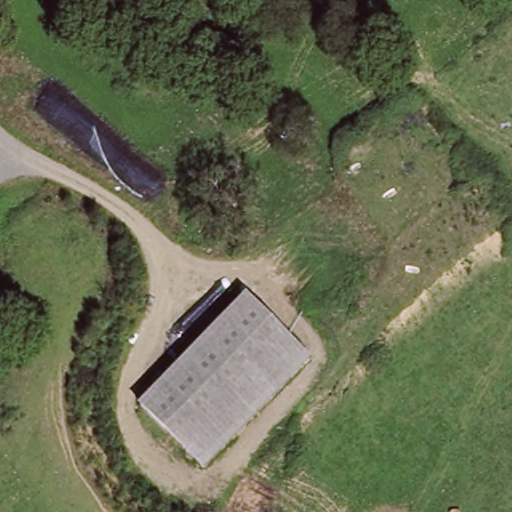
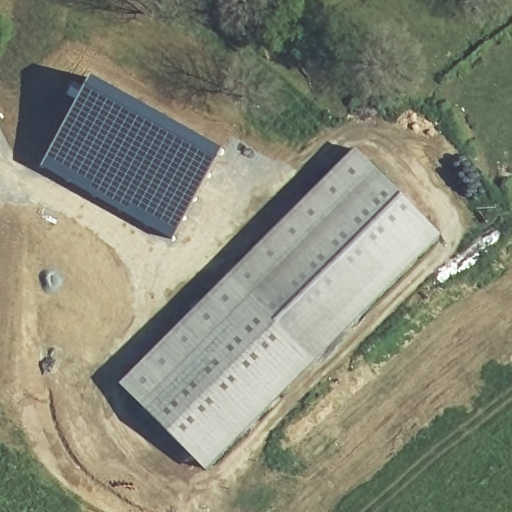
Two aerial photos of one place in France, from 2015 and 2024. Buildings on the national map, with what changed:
new [(90,77),(223,150),(172,241),(118,213),(39,167),(90,77)]
new [(118,383),(354,148),(440,236),(311,360),(297,346),(249,296),(141,402),(118,383)]
unchanged [(189,451),(141,402),(249,296),(297,346),(189,451)]
unchanged [(204,466),(189,451),(297,346),(311,360),(204,466)]

